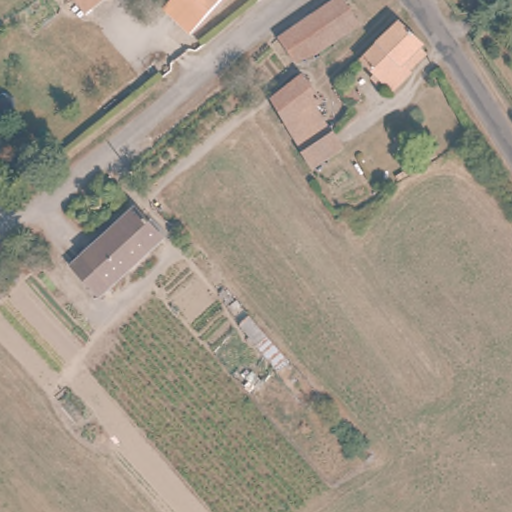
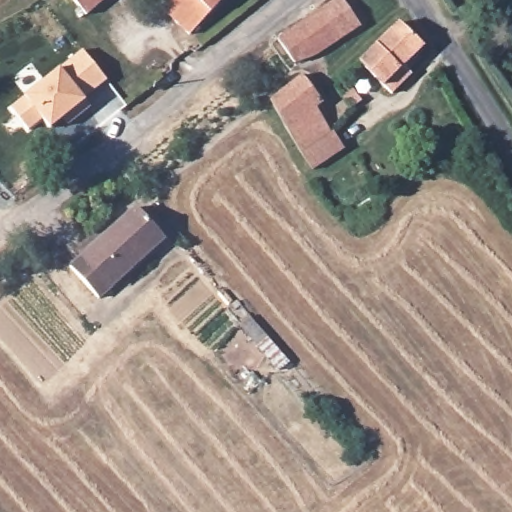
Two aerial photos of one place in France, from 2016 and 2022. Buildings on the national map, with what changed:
unchanged [(82,6),(77,0),(89,0),(82,6)]
unchanged [(190,29),(167,5),(172,0),(219,0),(190,29)]
unchanged [(320,7),(331,0),(345,0),(356,20),(335,32),(313,44),(295,54),(281,30),(299,20),(320,7)]
unchanged [(411,73),(395,91),(360,60),(398,21),(422,43),(416,50),(425,58),(411,73)]
new [(83,100),(89,108),(70,125),(64,116),(49,128),(41,120),(27,131),(8,108),(22,97),(58,68),(81,49),(106,81),(83,100)]
unchanged [(343,139),(313,160),(298,141),(286,124),(267,100),(298,74),(318,98),(311,104),(325,122),(328,120),(343,139)]
unchanged [(356,84),(362,94),(348,103),(342,92),(356,84)]
unchanged [(141,207),(165,238),(99,297),(71,267),(141,207)]

